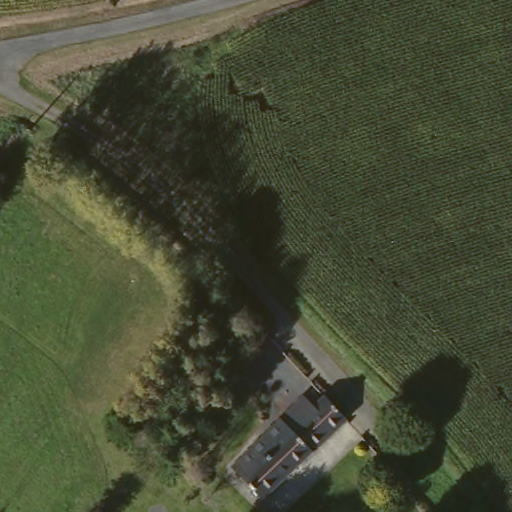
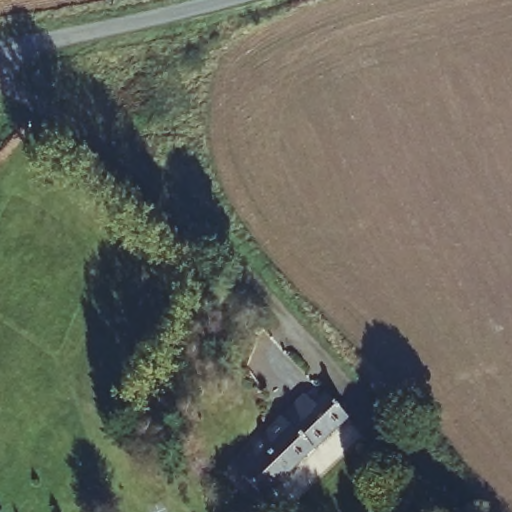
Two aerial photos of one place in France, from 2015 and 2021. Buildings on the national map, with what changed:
unchanged [(299,398),(309,408),(319,399),(341,423),(257,499),(236,476),(226,466),(299,398)]

